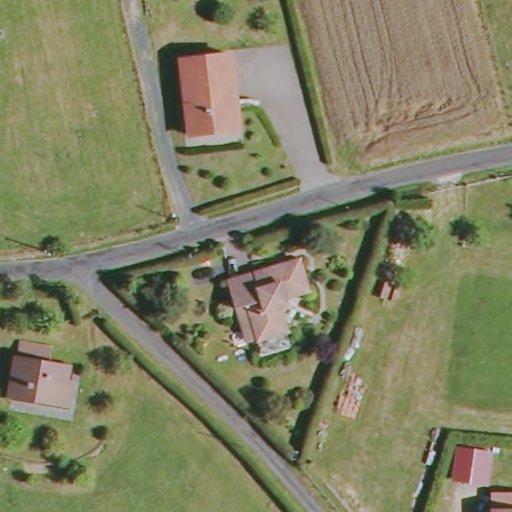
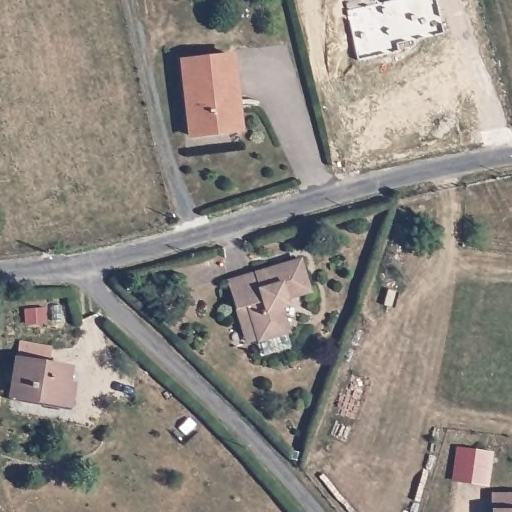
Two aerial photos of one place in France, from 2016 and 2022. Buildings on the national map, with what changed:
new [(379,0),(433,0),(448,32),(397,43),(400,54),(356,58),(343,10),(379,0)]
unchanged [(244,136),(189,143),(177,63),(233,55),(244,136)]
unchanged [(261,360),(256,343),(244,345),(234,311),(226,281),(302,258),(310,291),(287,299),(295,335),(297,352),(261,360)]
unchanged [(49,374),(68,375),(66,408),(16,405),(21,350),(50,353),(49,374)]
unchanged [(452,481),(456,447),(494,452),(490,486),(452,481)]
unchanged [(512,505),(512,512),(492,512),(493,503),(512,505)]

